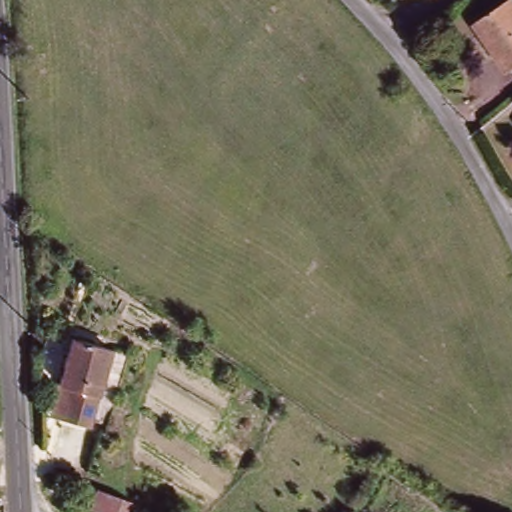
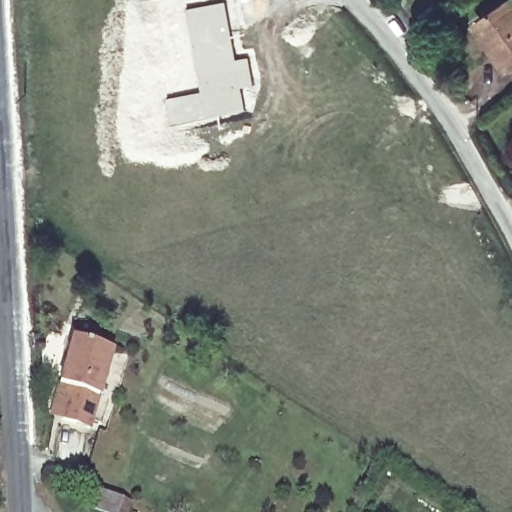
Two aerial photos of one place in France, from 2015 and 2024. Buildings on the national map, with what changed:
new [(199,91),(183,9),(224,1),(235,60),(247,58),(251,91),(242,92),(246,114),(222,120),(169,127),(164,99),(199,91)]
unchanged [(512,18),(512,69),(480,33),(507,11),(512,18)]
unchanged [(62,385),(75,340),(116,352),(94,430),(66,421),(53,417),(62,385)]
unchanged [(97,465),(88,481),(67,470),(77,454),(97,465)]

